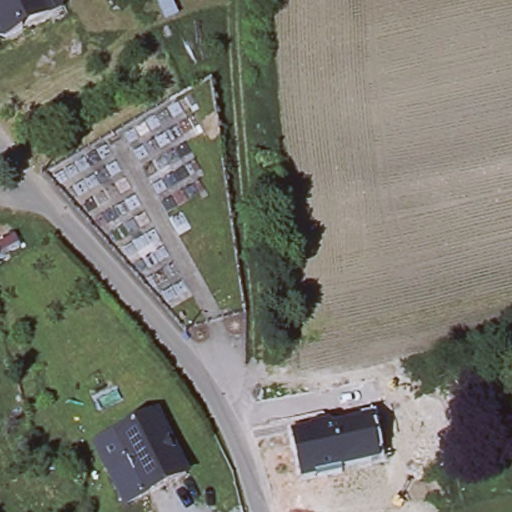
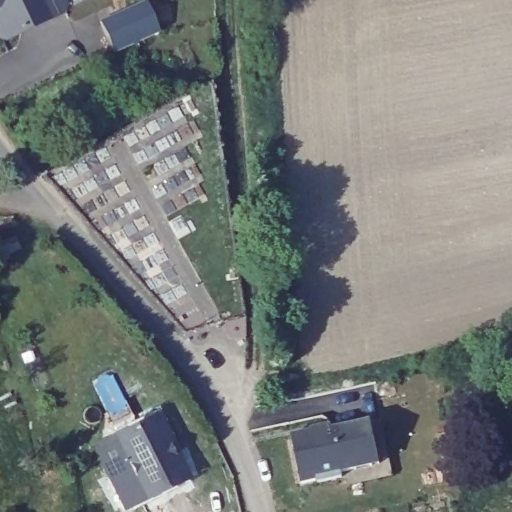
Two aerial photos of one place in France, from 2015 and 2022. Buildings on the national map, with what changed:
unchanged [(2,40),(0,37),(0,0),(57,0),(62,11),(2,40)]
new [(84,0),(62,11),(57,0),(84,0)]
new [(146,0),(147,0),(159,32),(115,51),(100,20),(146,0)]
unchanged [(290,433),(311,429),(310,426),(331,422),(332,426),(363,420),(362,416),(375,412),(377,428),(382,456),(385,466),(343,473),(344,477),(316,482),(316,479),(301,483),(290,433)]
unchanged [(187,480),(129,507),(107,463),(99,447),(128,433),(158,419),(187,480)]

